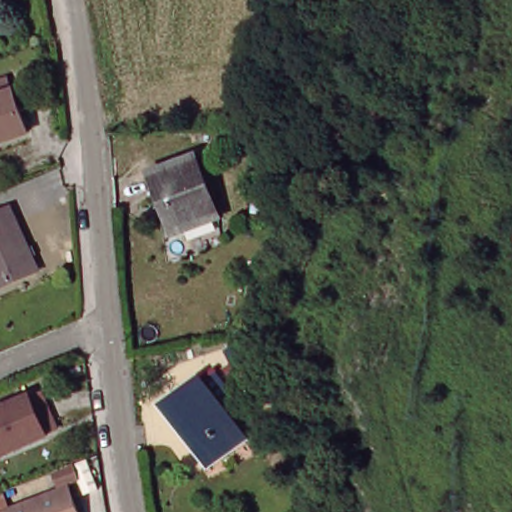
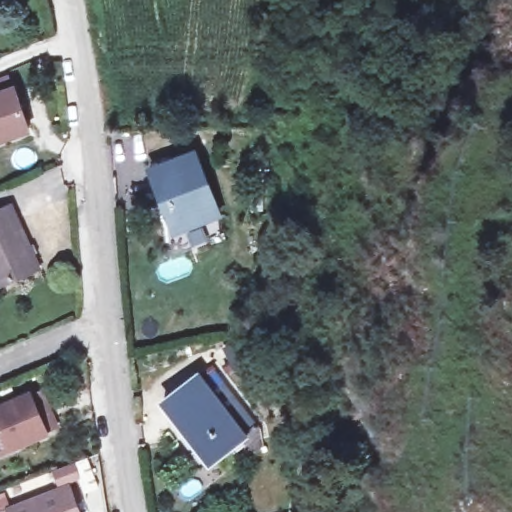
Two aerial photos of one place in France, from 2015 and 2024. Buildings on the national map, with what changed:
unchanged [(25,140),(0,148),(0,88),(7,85),(25,140)]
unchanged [(162,207),(147,180),(189,159),(217,216),(183,233),(169,204),(162,207)]
unchanged [(0,288),(0,216),(15,210),(40,272),(0,288)]
unchanged [(242,365),(230,347),(249,333),(260,353),(242,365)]
unchanged [(176,439),(156,410),(194,383),(197,388),(209,379),(247,432),(253,443),(255,454),(248,459),(239,446),(206,471),(181,435),(176,439)]
unchanged [(20,391),(31,387),(47,423),(36,427),(37,429),(2,444),(0,445),(0,398),(20,389),(20,391)]
unchanged [(70,463),(51,471),(45,457),(64,450),(70,463)]
unchanged [(73,512),(0,512),(0,506),(0,499),(59,475),(73,512)]

